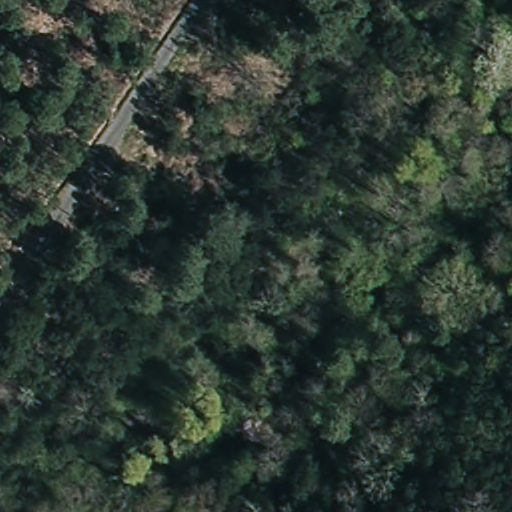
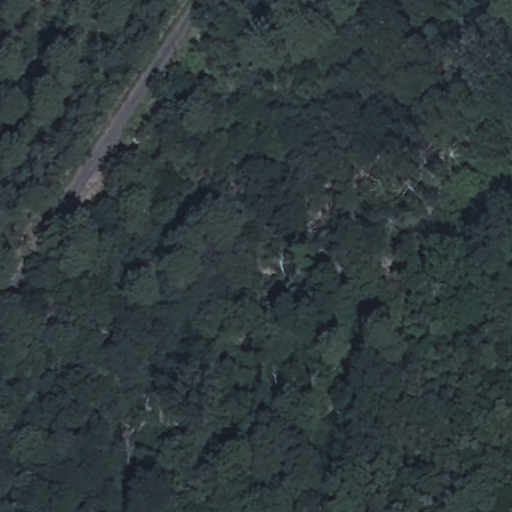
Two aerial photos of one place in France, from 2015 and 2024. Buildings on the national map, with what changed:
unchanged [(350,9),(342,29),(318,19),(325,0),(328,0),(350,9)]

